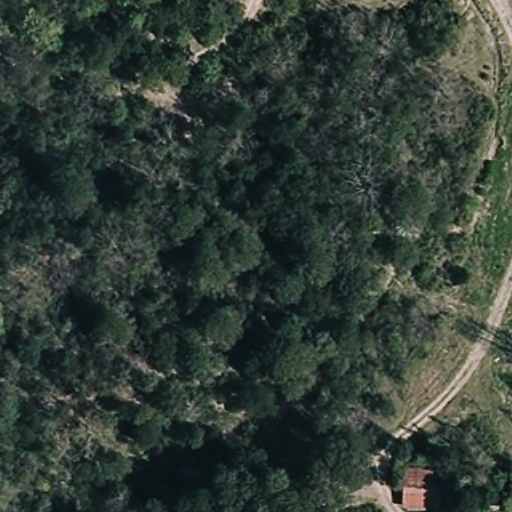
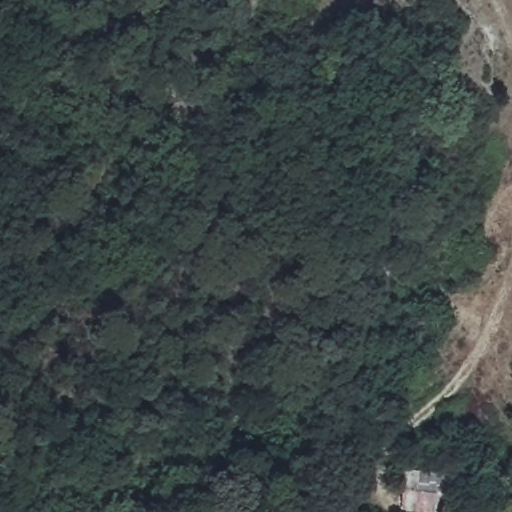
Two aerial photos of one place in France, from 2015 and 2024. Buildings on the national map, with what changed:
unchanged [(454,483),(451,512),(415,512),(401,511),(404,471),(437,472),(437,482),(454,483)]

